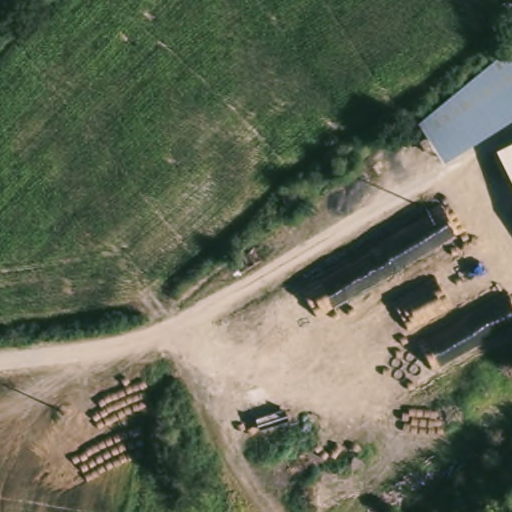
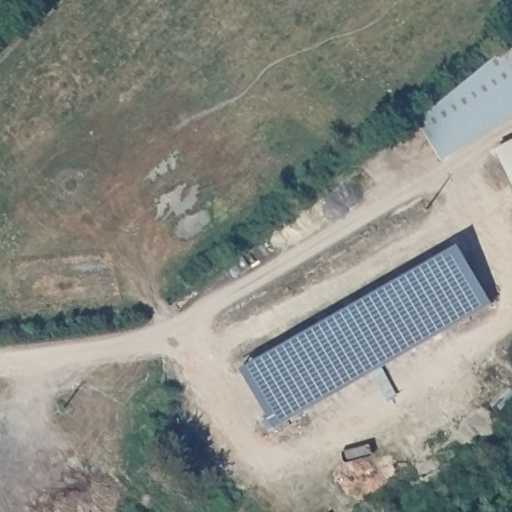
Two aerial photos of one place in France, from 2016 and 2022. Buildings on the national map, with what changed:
unchanged [(417,120),(512,42),(512,115),(440,160),(417,120)]
unchanged [(512,139),(512,182),(495,147),(512,139)]
new [(491,302),(274,426),(241,368),(459,244),(491,302)]

